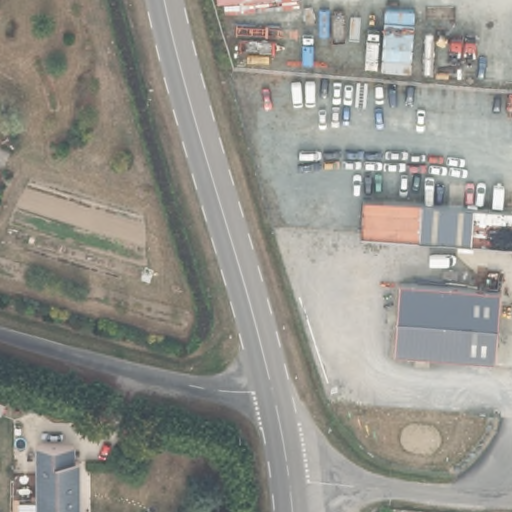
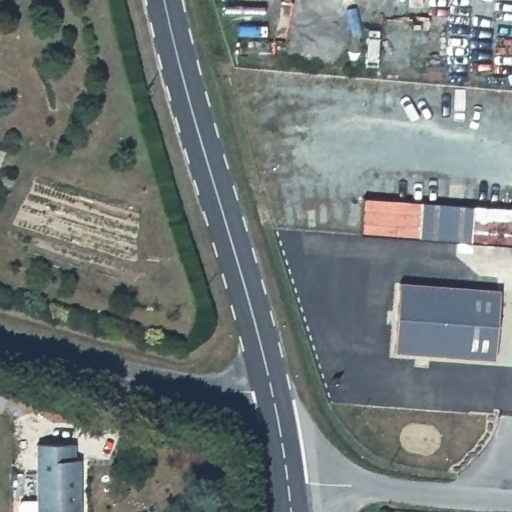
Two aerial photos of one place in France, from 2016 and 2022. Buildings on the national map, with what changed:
unchanged [(512,208),(512,245),(362,234),(364,197),(512,208)]
unchanged [(502,288),(496,358),(399,351),(405,281),(502,288)]
unchanged [(2,410),(0,409),(0,377),(11,381),(2,410)]
unchanged [(20,500),(35,501),(37,442),(76,443),(76,461),(83,461),(81,512),(19,512),(20,500)]

